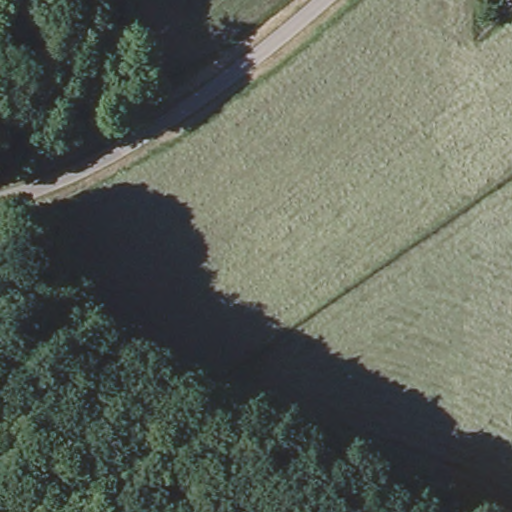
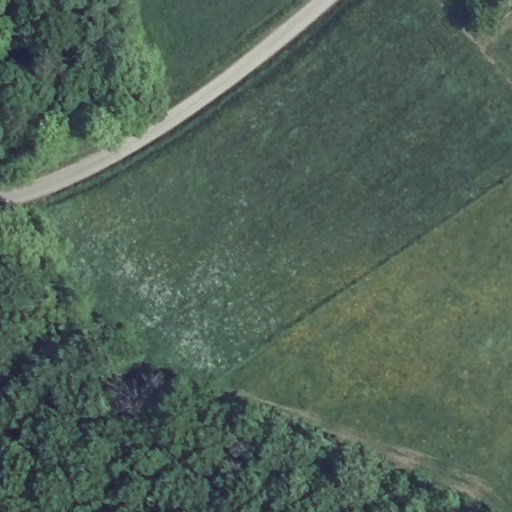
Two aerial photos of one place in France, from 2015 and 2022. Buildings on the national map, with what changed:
[]

